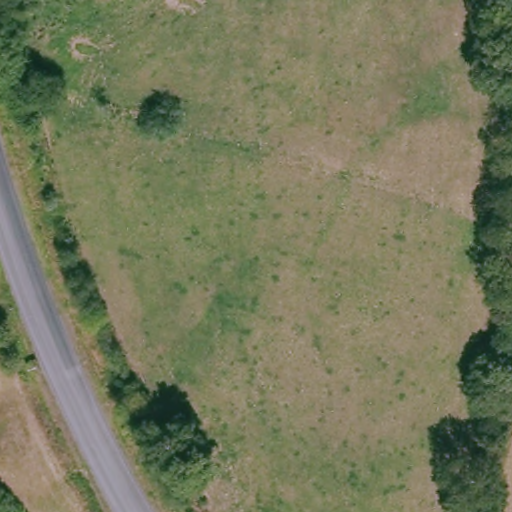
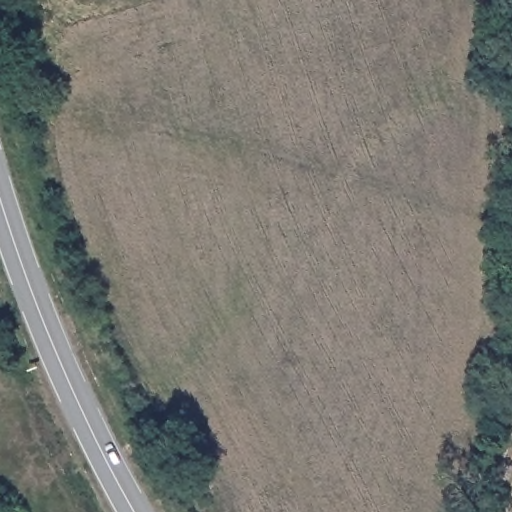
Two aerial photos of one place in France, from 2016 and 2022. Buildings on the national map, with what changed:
unchanged [(0,386),(0,382),(2,384),(0,386)]

